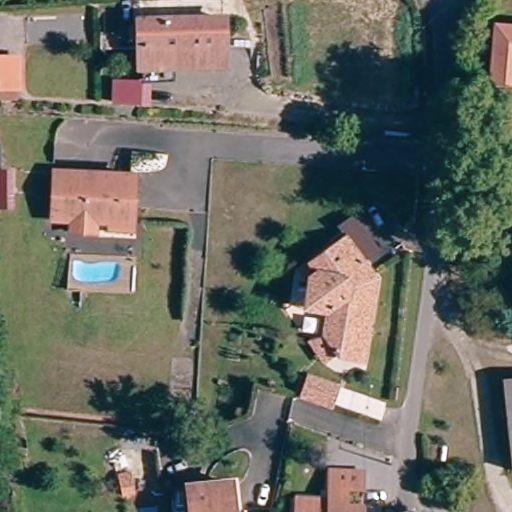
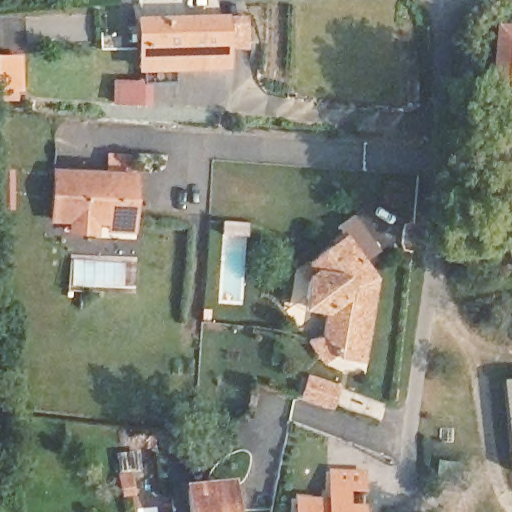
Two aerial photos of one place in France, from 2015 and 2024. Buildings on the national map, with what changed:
unchanged [(226,59),(226,69),(132,75),(132,56),(132,53),(132,26),(223,21),(226,59)]
unchanged [(491,31),(512,31),(512,86),(489,86),(491,31)]
unchanged [(0,96),(0,58),(20,58),(20,89),(20,96),(0,96)]
unchanged [(110,228),(111,220),(92,218),(91,230),(69,227),(70,215),(50,213),(56,166),(129,176),(136,177),(133,200),(131,223),(130,230),(110,228)]
unchanged [(314,335),(327,327),(332,305),(321,302),(312,286),(316,268),(310,259),(320,253),(357,230),(383,273),(363,353),(339,348),(338,346),(326,354),(314,335)]
unchanged [(327,401),(297,395),(301,374),(331,380),(327,401)]
unchanged [(512,464),(504,380),(507,379),(512,379),(512,464)]
unchanged [(292,496),(324,497),(324,471),(360,471),(360,487),(339,486),(339,507),(359,508),(359,512),(291,512),(292,496)]
unchanged [(235,512),(191,512),(189,489),(232,484),(235,512)]

